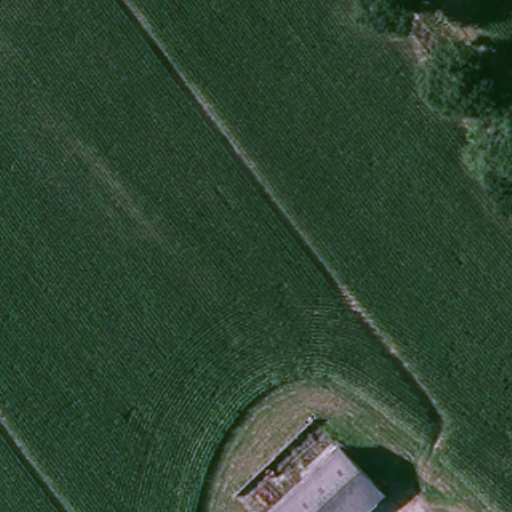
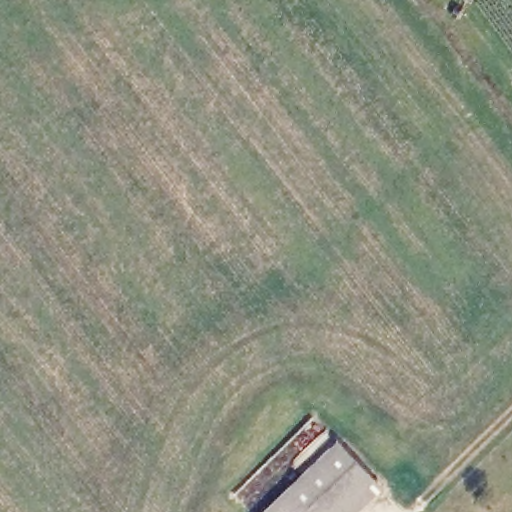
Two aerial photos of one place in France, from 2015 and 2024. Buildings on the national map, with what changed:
unchanged [(276,512),(343,442),(381,487),(356,512),(276,512)]

